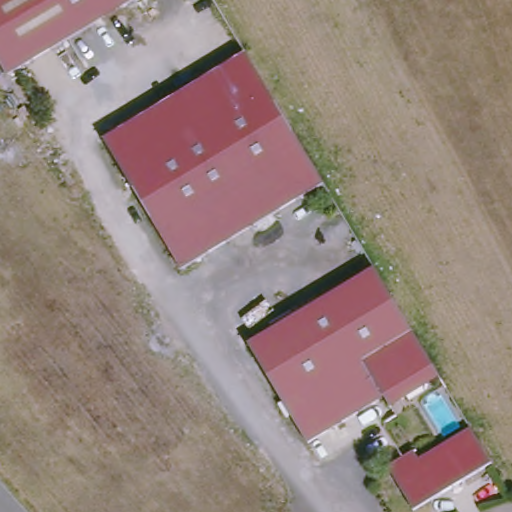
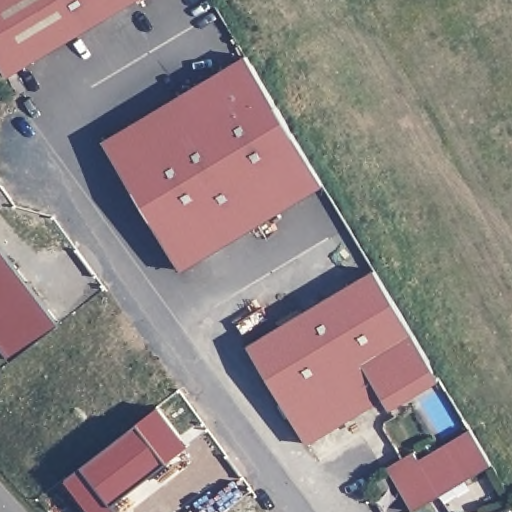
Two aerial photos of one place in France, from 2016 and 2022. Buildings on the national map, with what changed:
unchanged [(0,58),(0,0),(140,0),(12,78),(0,58)]
unchanged [(249,54),(327,182),(186,268),(108,140),(249,54)]
new [(0,357),(0,250),(58,325),(6,365),(0,357)]
unchanged [(413,336),(362,366),(383,400),(307,446),(248,348),(374,271),(413,336)]
unchanged [(439,380),(389,411),(383,400),(362,366),(413,336),(439,380)]
new [(180,436),(175,440),(183,449),(113,503),(120,512),(93,512),(66,477),(157,406),(180,436)]
unchanged [(416,508),(389,464),(415,449),(419,457),(471,426),(492,461),(416,508)]

